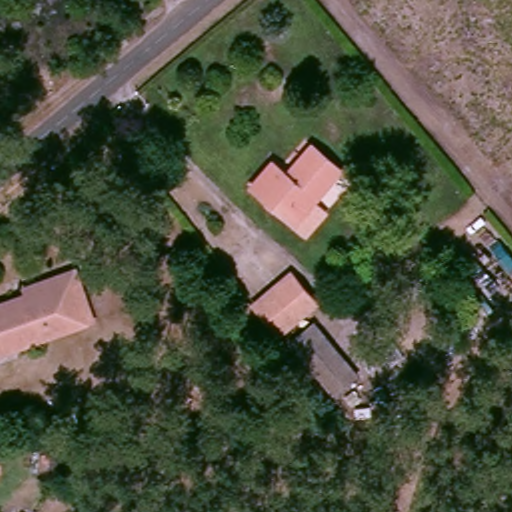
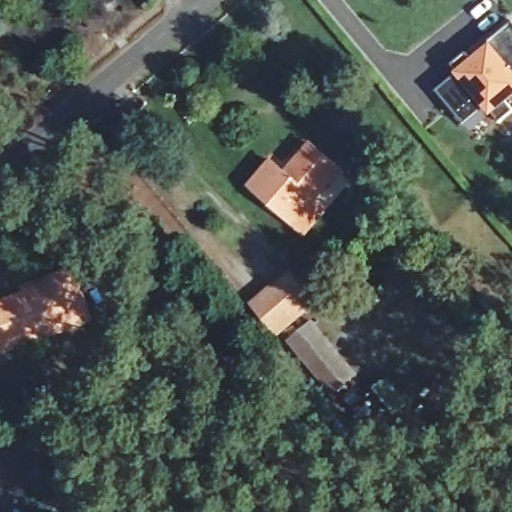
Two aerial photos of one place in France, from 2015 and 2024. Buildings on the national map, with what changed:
new [(512,112),(512,113),(500,122),(494,115),(490,118),(483,109),(464,124),(437,92),(455,74),(512,26),(512,99),(505,104),(512,112)]
unchanged [(250,179),(278,156),(290,172),(319,148),(345,177),(287,223),(250,179)]
unchanged [(26,299),(22,289),(75,267),(81,280),(95,309),(78,318),(55,328),(44,317),(38,319),(45,338),(22,348),(0,358),(0,309),(26,299)]
unchanged [(252,306),(290,275),(314,307),(277,337),(252,306)]
unchanged [(336,398),(291,345),(318,321),(361,376),(336,398)]

